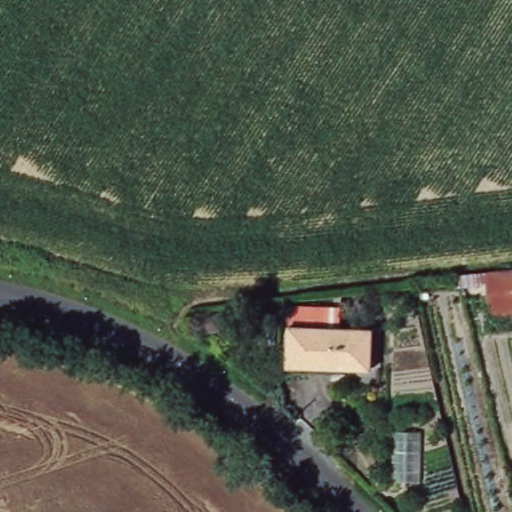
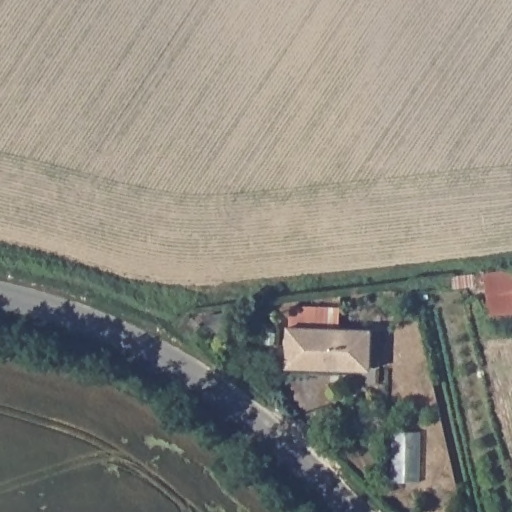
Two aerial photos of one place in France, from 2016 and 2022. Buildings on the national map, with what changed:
unchanged [(512,315),(488,317),(483,272),(512,270),(512,315)]
unchanged [(366,372),(282,369),(284,327),(285,308),(333,310),(333,329),(368,330),(366,372)]

